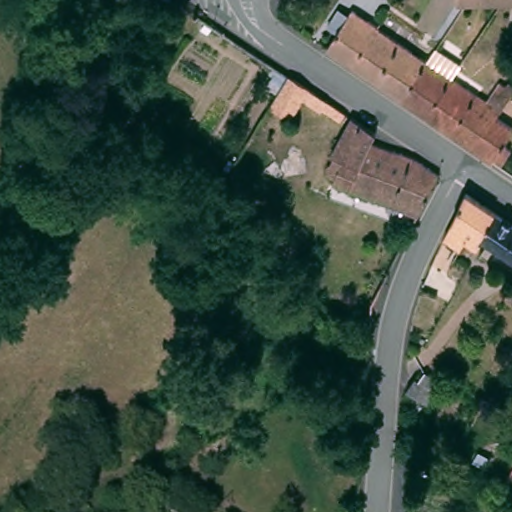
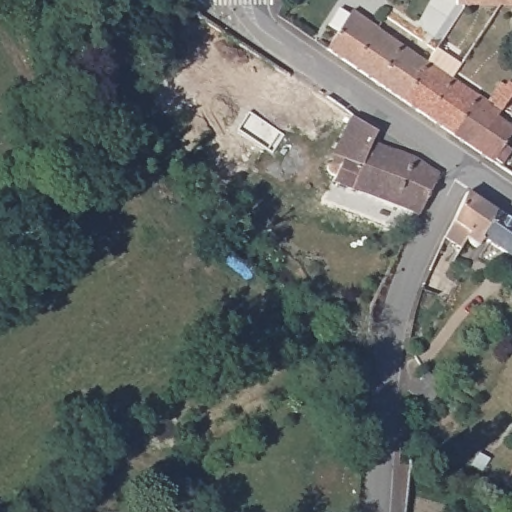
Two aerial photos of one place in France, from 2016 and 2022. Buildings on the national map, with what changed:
unchanged [(498,1),(469,1),(453,1),(453,0),(512,0),(512,1),(498,1)]
unchanged [(376,27),(352,66),(325,47),(350,9),(376,27)]
unchanged [(388,35),(399,42),(374,81),(352,66),(376,27),(388,35)]
unchanged [(425,116),(401,100),(374,81),(399,42),(427,61),(436,47),(458,62),(449,77),(474,94),(449,132),(425,116)]
unchanged [(345,123),(328,111),(325,116),(306,103),(294,122),(273,109),(293,78),(332,105),(350,117),(345,123)]
unchanged [(498,82),(504,86),(507,82),(512,85),(512,89),(498,110),(494,117),(511,129),(501,143),(509,148),(497,166),(449,132),(474,94),(485,101),(498,82)]
unchanged [(325,173),(328,165),(333,166),(336,162),(332,158),(356,121),(379,136),(375,147),(422,166),(442,178),(420,220),(320,178),(325,173)]
unchanged [(463,209),(470,192),(500,212),(484,241),(479,249),(466,241),(462,248),(447,238),(463,209)]
unchanged [(500,212),(512,221),(512,261),(484,241),(500,212)]
unchanged [(416,372),(439,388),(430,401),(407,386),(416,372)]
unchanged [(490,456),(483,465),(481,467),(471,460),(481,448),(490,456)]

